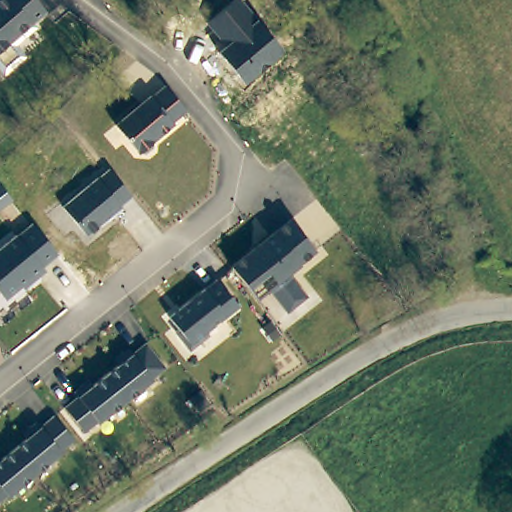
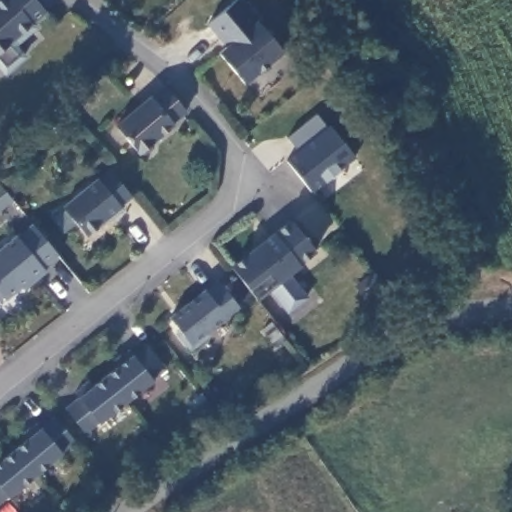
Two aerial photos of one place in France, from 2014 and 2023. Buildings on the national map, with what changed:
unchanged [(27,59),(4,76),(0,72),(0,0),(34,0),(46,13),(14,41),(27,59)]
unchanged [(219,51),(225,46),(207,26),(237,0),(242,0),(286,52),(247,85),(219,51)]
unchanged [(173,124),(174,125),(140,155),(116,124),(149,94),(152,96),(164,85),(188,113),(173,124)]
new [(312,191),(284,160),(297,149),(286,136),(315,113),(325,126),(328,123),(355,156),(312,191)]
unchanged [(122,206),(124,208),(89,237),(62,207),(97,177),(100,178),(109,170),(132,197),(122,206)]
new [(12,200),(0,211),(0,185),(12,200)]
unchanged [(290,276),(308,298),(287,316),(268,294),(258,302),(231,266),(292,220),(317,253),(290,276)]
unchanged [(44,269),(47,273),(24,291),(21,289),(7,301),(0,293),(0,248),(30,223),(59,256),(44,269)]
unchanged [(207,335),(210,338),(195,350),(169,317),(217,280),(240,307),(207,335)]
unchanged [(87,434),(65,409),(146,344),(167,370),(87,434)]
unchanged [(0,506),(0,460),(52,415),(75,442),(0,506)]

